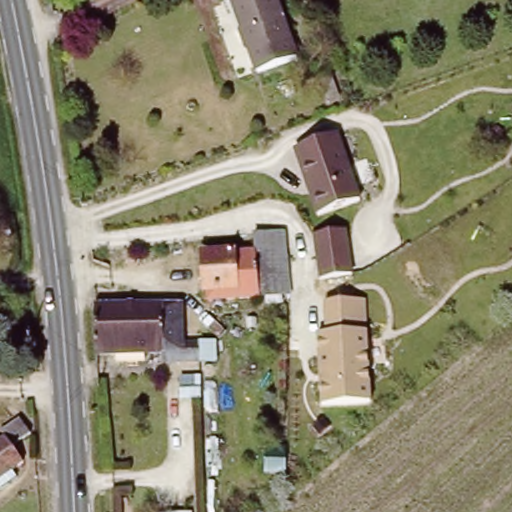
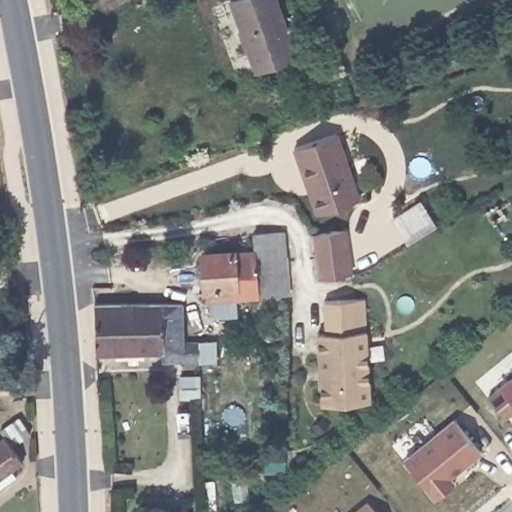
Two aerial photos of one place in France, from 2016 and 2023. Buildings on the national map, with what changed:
unchanged [(301,45),(257,62),(232,0),(283,0),(301,45)]
unchanged [(293,147),(340,131),(360,199),(316,214),(293,147)]
unchanged [(205,251),(255,250),(253,230),(285,229),(287,291),(207,295),(205,251)]
unchanged [(347,229),(353,276),(320,280),(315,231),(347,229)]
unchanged [(365,297),(367,328),(371,401),(320,403),(317,332),(325,333),(323,300),(365,297)]
unchanged [(200,354),(160,355),(160,347),(95,349),(93,301),(180,298),(181,335),(199,334),(200,354)]
new [(488,395),(501,385),(512,377),(512,413),(507,418),(488,395)]
unchanged [(9,430),(5,422),(22,410),(33,427),(15,439),(26,455),(16,463),(18,466),(2,477),(0,476),(0,436),(9,430)]
new [(451,477),(456,483),(435,500),(404,458),(453,418),(482,452),(451,477)]
new [(375,512),(354,512),(367,501),(375,512)]

